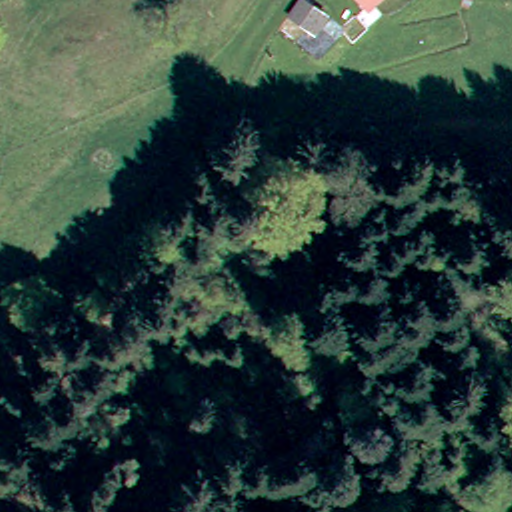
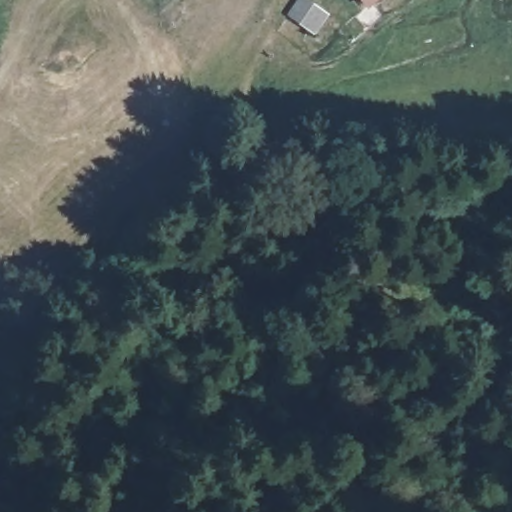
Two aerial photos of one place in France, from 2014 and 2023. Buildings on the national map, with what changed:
unchanged [(341,37),(336,29),(352,18),(364,34),(349,44),(346,42),(340,46),(335,41),(341,37)]

